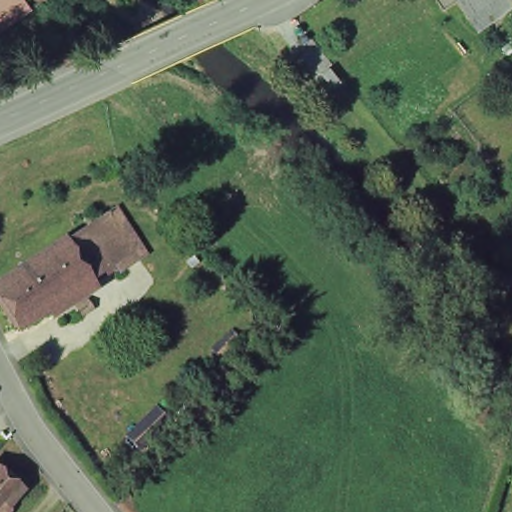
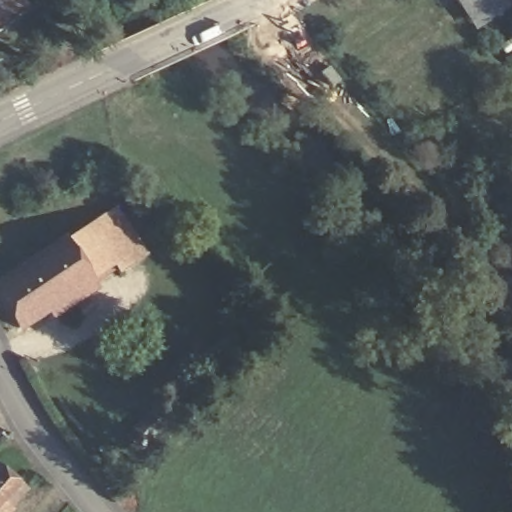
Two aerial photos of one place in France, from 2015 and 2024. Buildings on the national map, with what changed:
unchanged [(14,14),(0,24),(0,0),(33,0),(14,14)]
unchanged [(39,5),(45,0),(49,0),(65,22),(55,29),(39,5)]
unchanged [(467,12),(459,0),(485,0),(467,12)]
unchanged [(467,12),(485,0),(511,0),(475,24),(467,12)]
unchanged [(319,74),(327,67),(337,81),(330,87),(319,74)]
unchanged [(108,203),(139,249),(113,266),(109,260),(82,220),(108,203)]
unchanged [(0,306),(0,274),(82,220),(109,260),(11,323),(0,306)]
unchanged [(1,512),(0,512),(0,469),(22,487),(1,512)]

